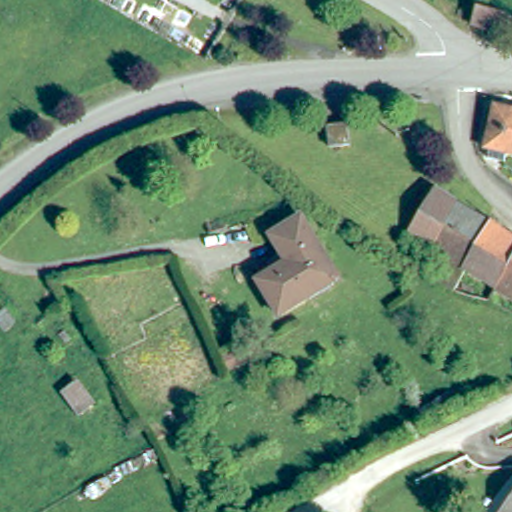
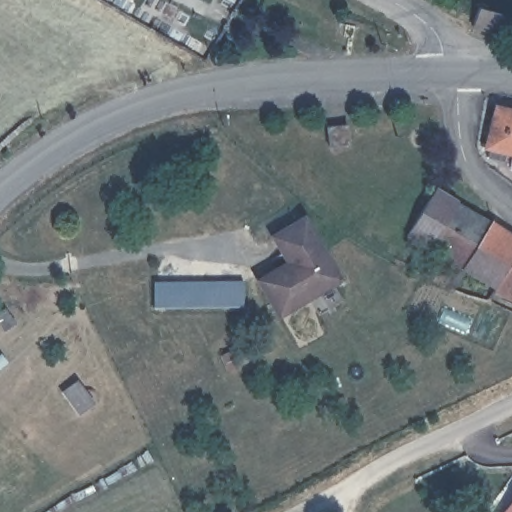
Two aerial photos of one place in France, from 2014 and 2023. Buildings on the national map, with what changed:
unchanged [(510,15),(505,31),(472,18),(477,6),(510,15)]
unchanged [(481,151),(482,140),(480,139),(490,100),(512,105),(512,148),(500,145),(497,155),(481,151)]
unchanged [(342,152),(322,154),(321,141),(309,142),(308,134),(320,134),(339,132),(342,152)]
unchanged [(430,243),(406,228),(434,184),(457,197),(431,241),(430,243)]
unchanged [(491,218),(465,262),(452,268),(439,262),(447,250),(431,241),(457,197),(491,218)]
unchanged [(285,258),(272,229),(302,216),(314,240),(327,263),(336,277),(275,308),(255,274),(285,258)]
unchanged [(512,231),(512,252),(496,280),(465,262),(491,218),(512,231)]
unchanged [(496,280),(512,252),(512,290),(496,280)]
new [(244,307),(153,307),(152,282),(242,281),(244,307)]
unchanged [(90,411),(78,420),(65,402),(77,395),(90,411)]
unchanged [(506,486),(512,478),(512,491),(506,486)]
unchanged [(512,492),(512,512),(497,512),(512,492)]

